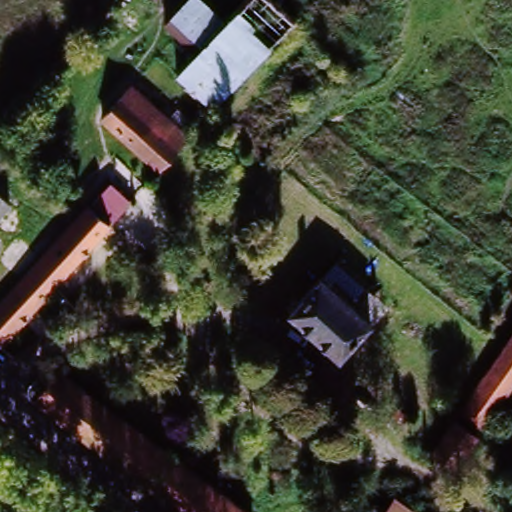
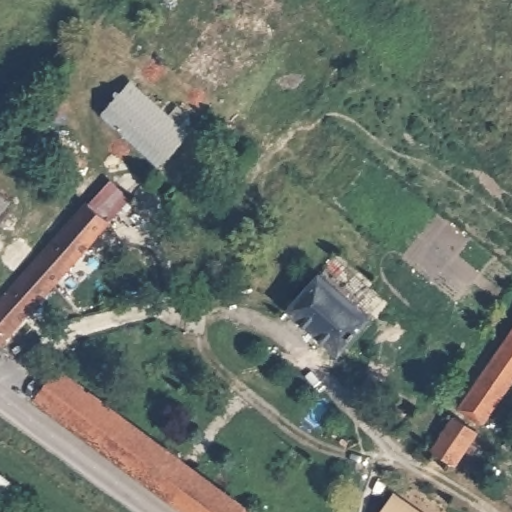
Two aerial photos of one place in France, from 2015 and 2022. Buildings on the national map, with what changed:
demolished [(287,0),(299,10),(217,105),(180,74),(196,54),(217,30),(242,0),(287,0)]
demolished [(185,3),(217,30),(196,54),(164,28),(185,3)]
unchanged [(187,135),(163,162),(160,160),(106,116),(127,89),(140,96),(185,132),(187,135)]
unchanged [(0,300),(94,192),(120,213),(7,348),(0,342),(0,300)]
unchanged [(0,215),(0,197),(9,204),(0,215)]
unchanged [(336,256),(389,304),(373,320),(319,275),(336,256)]
unchanged [(288,311),(319,275),(373,320),(341,357),(288,311)]
unchanged [(457,409),(512,326),(512,388),(486,428),(457,409)]
unchanged [(36,399),(57,369),(250,512),(187,512),(36,399)]
unchanged [(432,449),(452,419),(479,434),(463,458),(456,469),(432,449)]
unchanged [(4,512),(0,512),(0,470),(23,495),(4,512)]
unchanged [(418,512),(378,512),(391,493),(418,512)]

